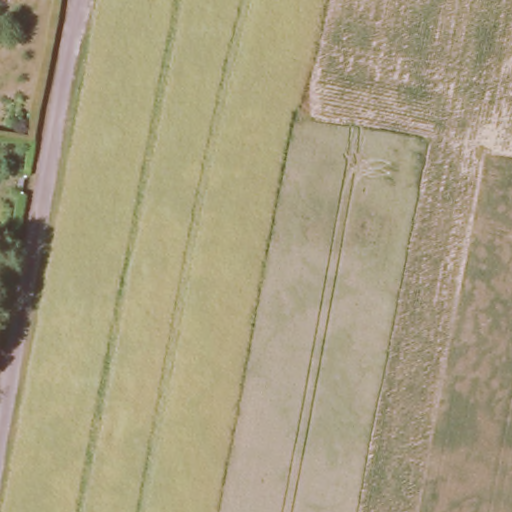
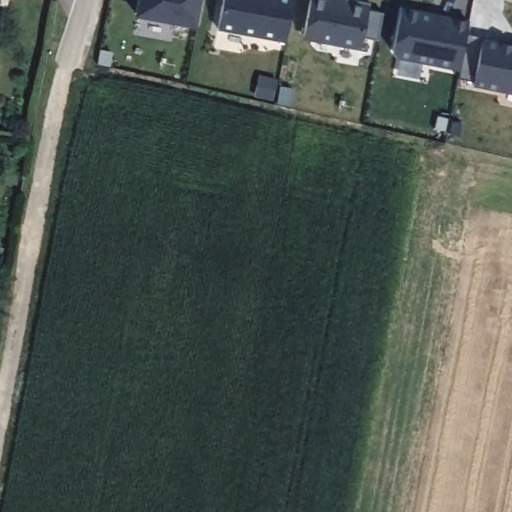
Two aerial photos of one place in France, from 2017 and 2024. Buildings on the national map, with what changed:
new [(138,15),(140,0),(201,0),(196,26),(138,15)]
new [(218,28),(224,0),(294,0),(286,41),(218,28)]
new [(340,0),(354,0),(369,3),(369,9),(383,12),(379,40),(364,37),(361,48),(319,40),(319,38),(299,34),(305,0),(333,0),(340,1),(340,0)]
new [(402,8),(469,21),(459,68),(398,56),(393,50),(402,8)]
new [(512,42),(512,92),(473,84),(474,81),(458,78),(459,68),(467,33),(484,36),(512,42)]

